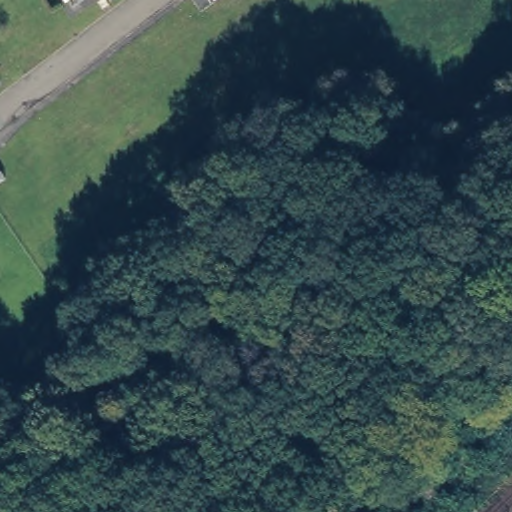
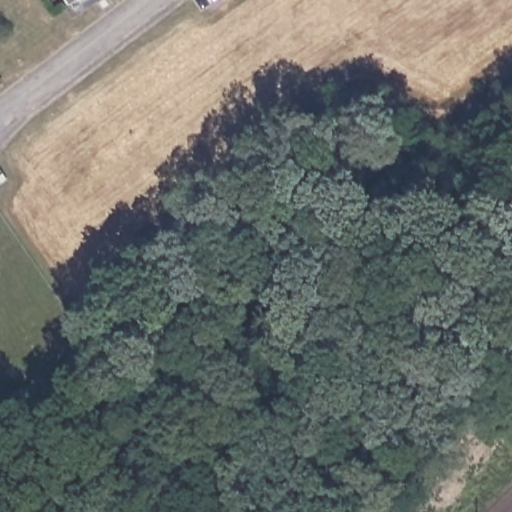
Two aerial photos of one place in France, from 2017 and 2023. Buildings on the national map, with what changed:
unchanged [(63,3),(61,0),(68,0),(63,3)]

